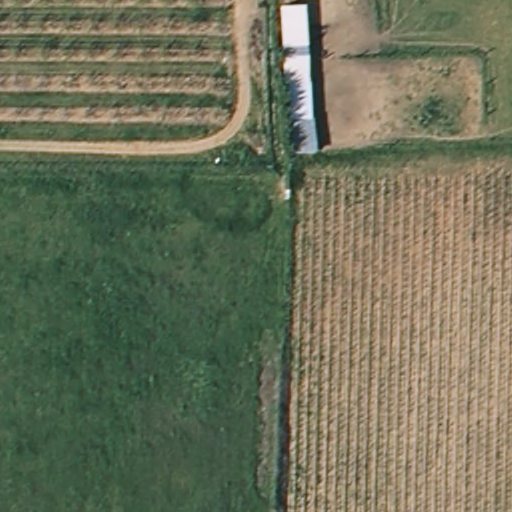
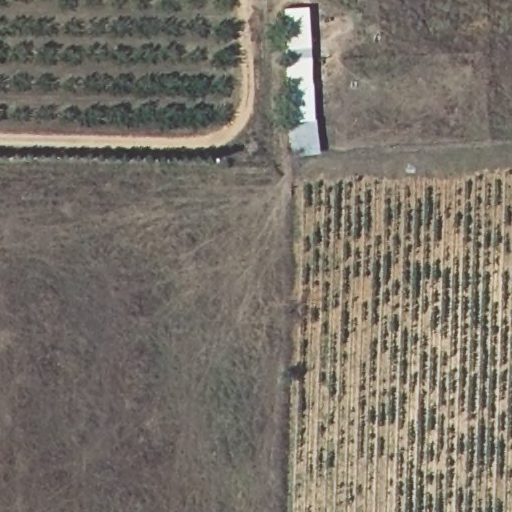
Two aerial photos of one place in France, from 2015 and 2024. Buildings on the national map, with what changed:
unchanged [(311,81),(315,120),(319,150),(292,154),(289,121),(287,81),(282,6),(307,4),(311,81)]

